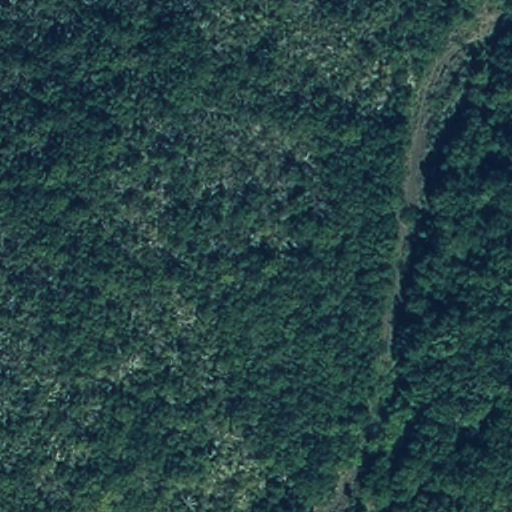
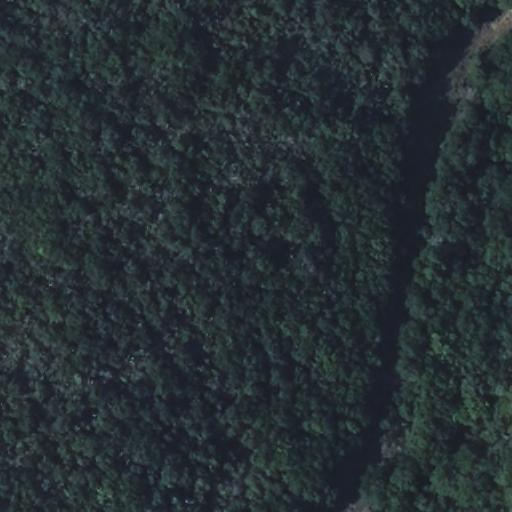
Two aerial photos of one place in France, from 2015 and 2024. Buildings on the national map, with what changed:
[]

